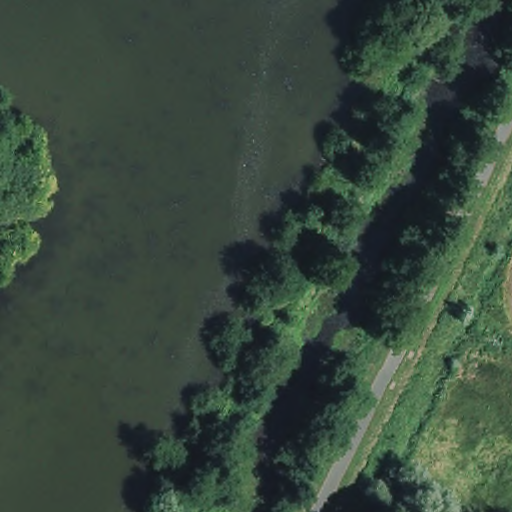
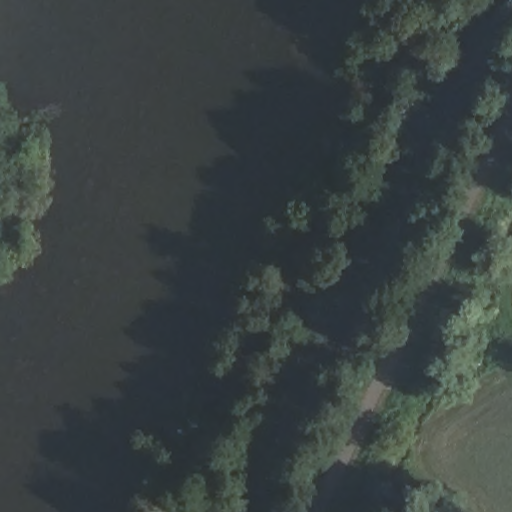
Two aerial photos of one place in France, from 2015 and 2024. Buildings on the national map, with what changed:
[]

